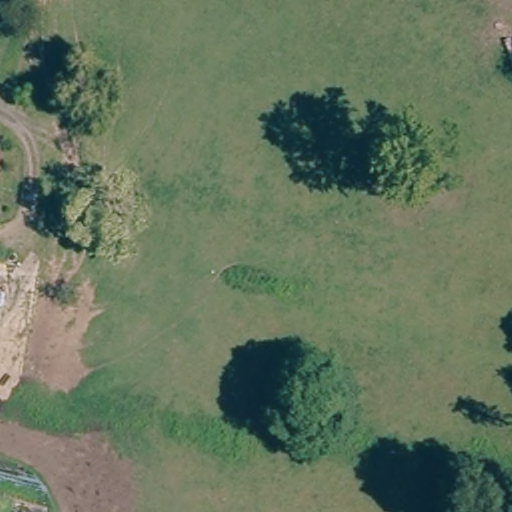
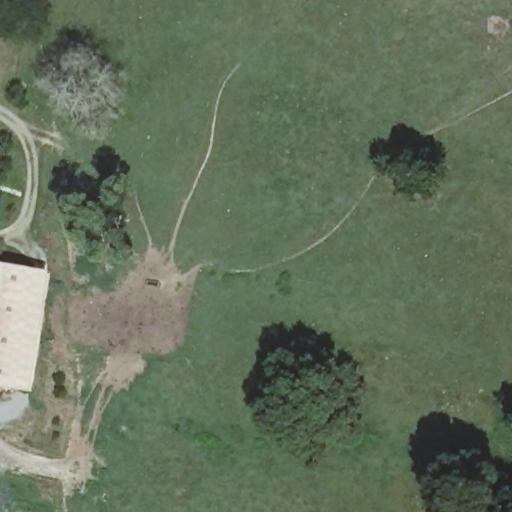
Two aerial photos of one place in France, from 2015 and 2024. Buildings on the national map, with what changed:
unchanged [(0,211),(0,161),(7,161),(0,211)]
new [(35,399),(0,393),(0,267),(52,275),(35,399)]

